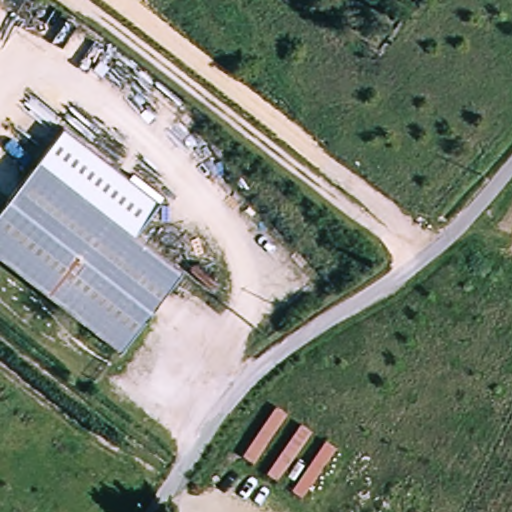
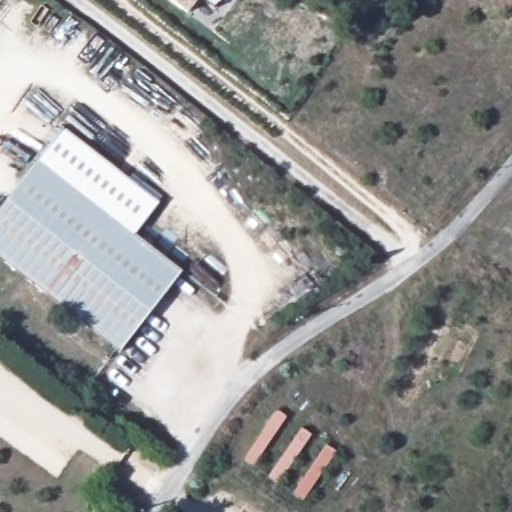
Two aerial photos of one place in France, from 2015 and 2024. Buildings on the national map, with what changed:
unchanged [(64,307),(47,327),(4,289),(17,272),(0,258),(0,207),(61,128),(157,203),(132,235),(180,271),(117,351),(64,307)]

